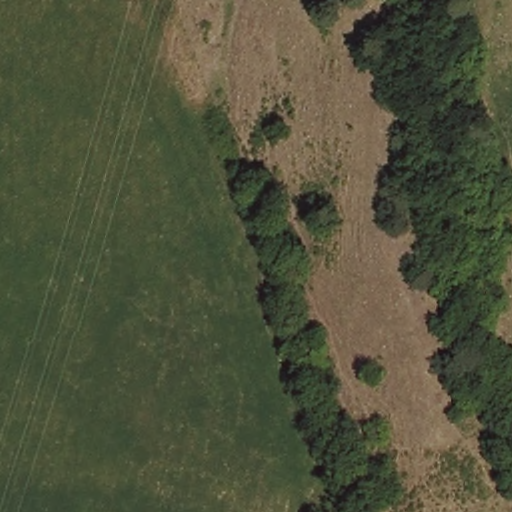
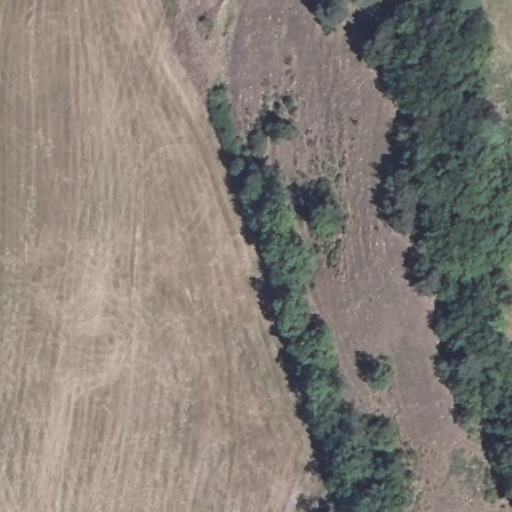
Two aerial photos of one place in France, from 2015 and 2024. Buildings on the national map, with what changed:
[]

